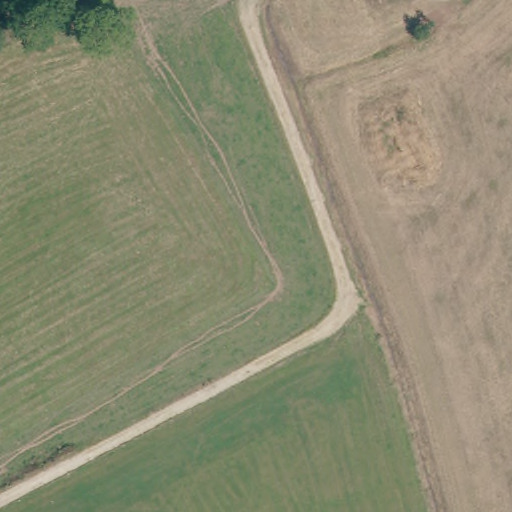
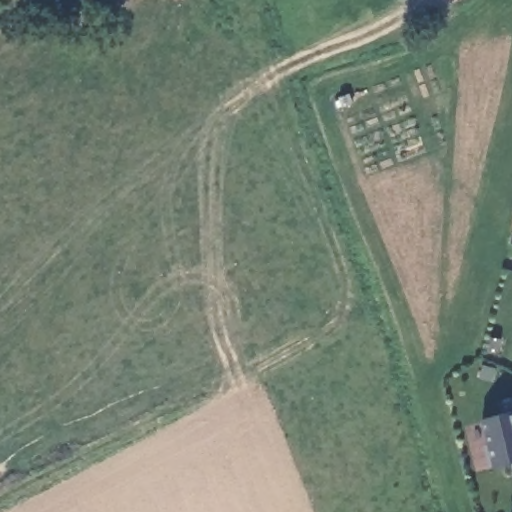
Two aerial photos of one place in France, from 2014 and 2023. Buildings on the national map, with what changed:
new [(484,420),(512,414),(512,463),(496,467),(484,420)]

